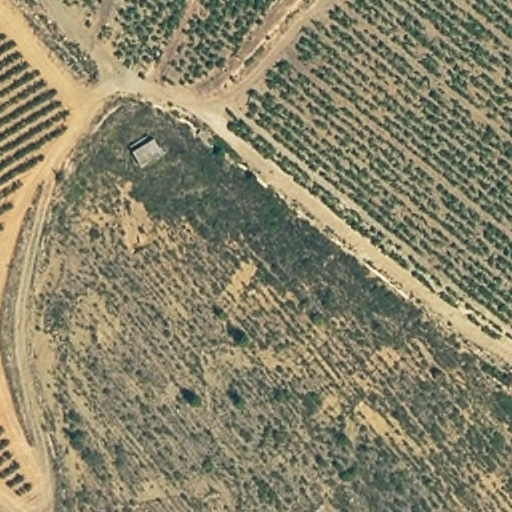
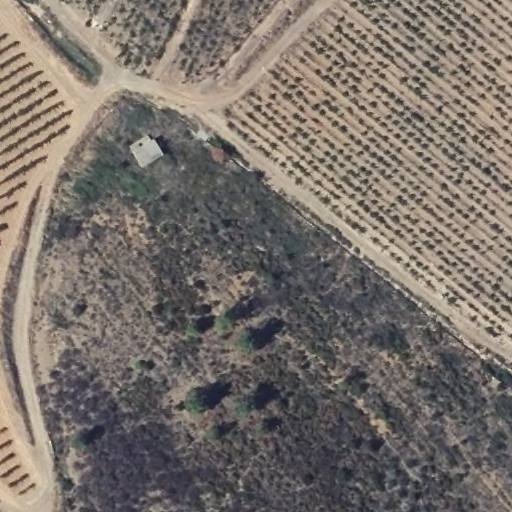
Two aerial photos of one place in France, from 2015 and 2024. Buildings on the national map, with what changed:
unchanged [(162,155),(139,168),(131,152),(153,140),(162,155)]

